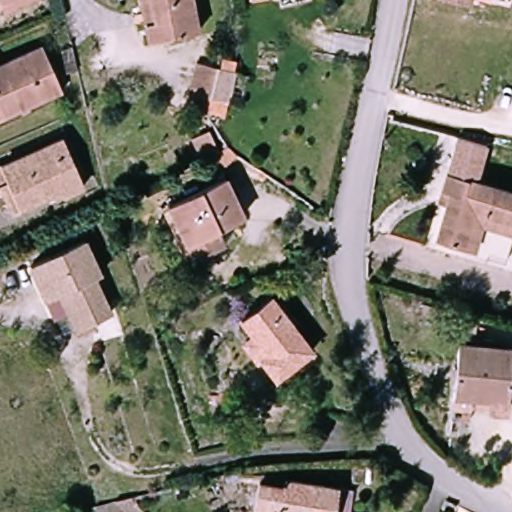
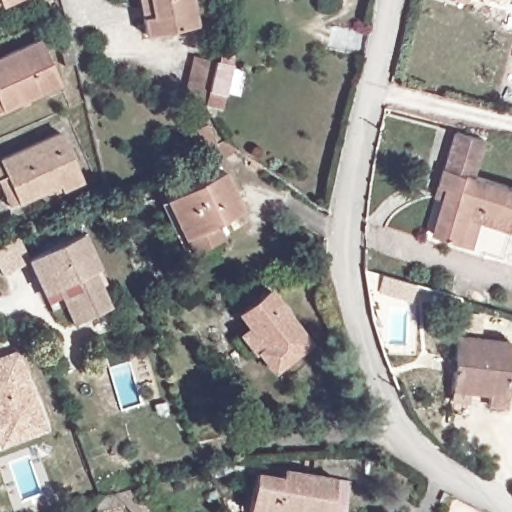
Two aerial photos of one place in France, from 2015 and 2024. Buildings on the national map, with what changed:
unchanged [(13,0),(0,4),(0,0),(13,0)]
unchanged [(146,31),(142,12),(139,0),(196,0),(200,20),(146,31)]
unchanged [(38,45),(55,87),(0,109),(0,60),(38,45)]
unchanged [(227,65),(224,88),(206,86),(204,101),(188,100),(192,62),(209,63),(227,65)]
unchanged [(215,143),(200,149),(192,128),(207,122),(215,143)]
unchanged [(462,233),(434,226),(447,177),(440,174),(443,160),(452,131),(480,138),(472,168),(512,180),(512,204),(474,194),(462,233)]
unchanged [(0,195),(0,159),(58,132),(81,183),(61,192),(57,183),(16,202),(6,207),(0,195)]
unchanged [(182,238),(163,200),(218,173),(238,211),(210,224),(217,238),(189,252),(182,238)]
unchanged [(512,221),(510,224),(482,214),(476,237),(462,233),(474,194),(512,204),(512,221)]
unchanged [(55,291),(44,295),(31,262),(82,240),(96,271),(89,274),(104,306),(77,317),(68,321),(55,291)]
unchanged [(271,290),(306,348),(267,372),(233,316),(271,290)]
unchanged [(445,393),(447,381),(457,336),(508,348),(499,393),(495,404),(445,393)]
new [(5,441),(3,436),(0,437),(0,354),(15,347),(43,416),(47,425),(5,441)]
unchanged [(256,471),(336,485),(331,512),(248,512),(256,471)]

